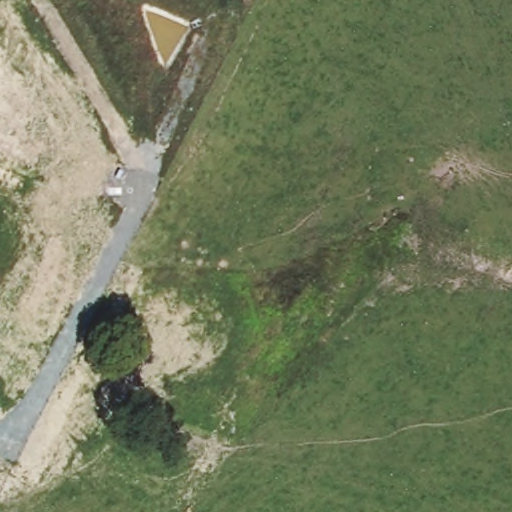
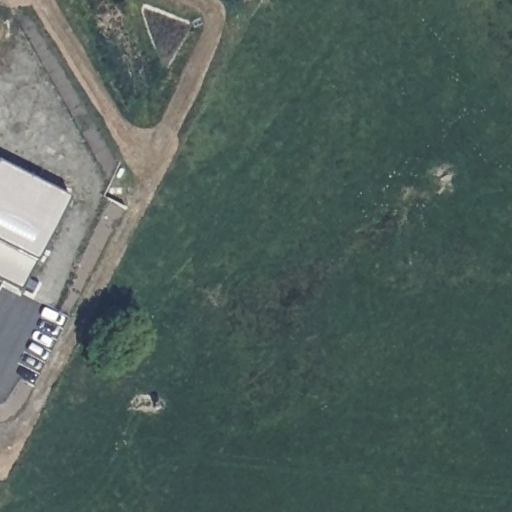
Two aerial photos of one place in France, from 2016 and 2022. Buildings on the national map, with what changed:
new [(0,165),(67,200),(34,262),(19,288),(0,279),(0,165)]

